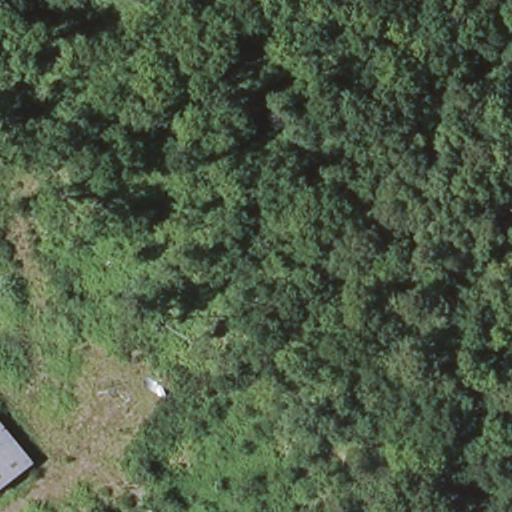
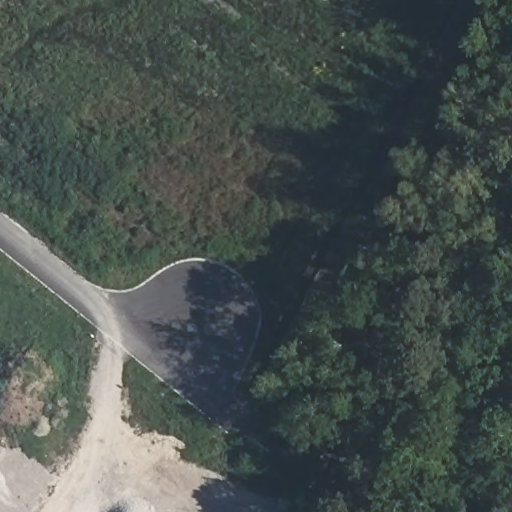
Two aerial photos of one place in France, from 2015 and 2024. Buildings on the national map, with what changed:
demolished [(37,460),(0,494),(0,417),(37,460)]

